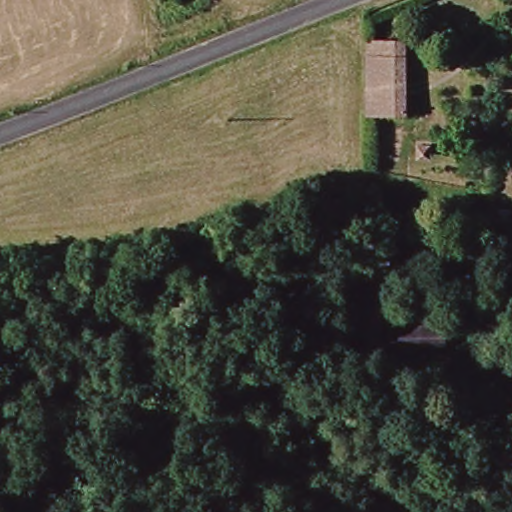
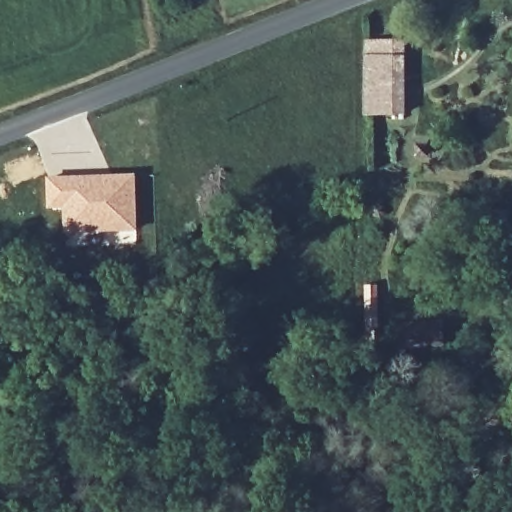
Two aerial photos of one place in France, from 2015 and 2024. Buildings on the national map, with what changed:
unchanged [(410,109),(367,111),(364,40),(406,39),(410,109)]
new [(136,173),(137,232),(65,238),(63,209),(47,209),(47,175),(136,173)]

